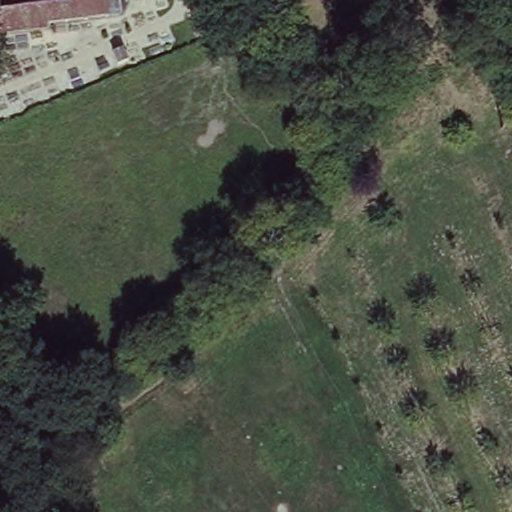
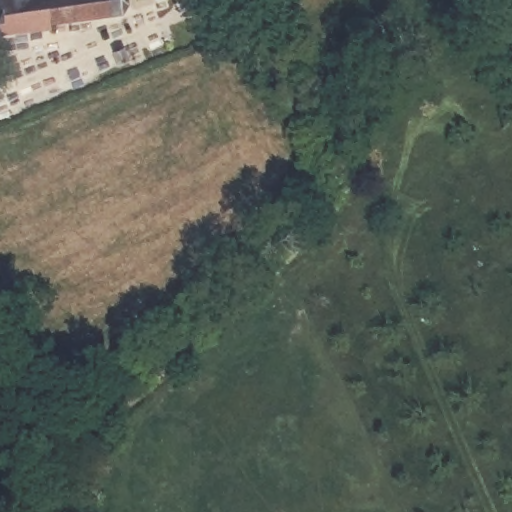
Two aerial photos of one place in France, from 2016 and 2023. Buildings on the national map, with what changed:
unchanged [(121,17),(0,40),(0,0),(118,0),(121,17)]

